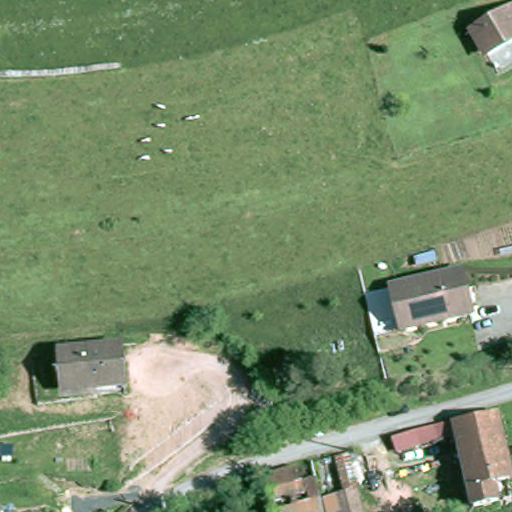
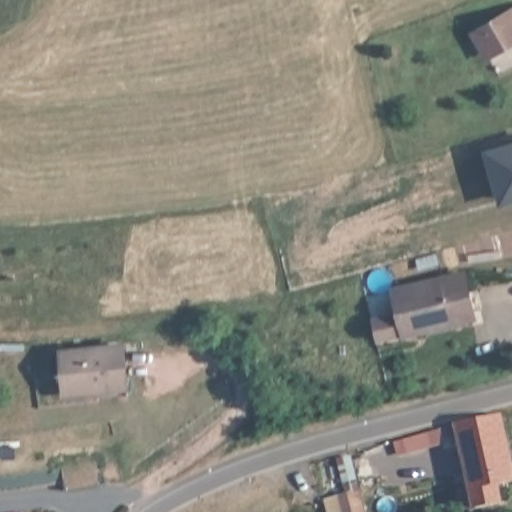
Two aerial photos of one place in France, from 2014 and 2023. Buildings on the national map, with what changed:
unchanged [(509,2),(512,0),(512,31),(488,44),(474,21),(509,2)]
new [(480,148),(512,139),(512,200),(497,204),(480,148)]
unchanged [(401,332),(391,288),(460,277),(466,300),(474,299),(479,319),(471,321),(439,326),(401,332)]
unchanged [(396,311),(401,332),(377,338),(372,316),(396,311)]
unchanged [(60,352),(126,346),(130,393),(64,395),(60,352)]
unchanged [(509,474),(502,476),(506,497),(470,505),(457,435),(407,447),(404,432),(455,423),(498,414),(509,474)]
unchanged [(279,512),(277,496),(275,477),(304,468),(307,489),(321,486),(324,512),(279,512)]
unchanged [(364,500),(366,512),(341,512),(340,505),(364,500)]
unchanged [(10,512),(0,512),(0,508),(8,505),(10,512)]

